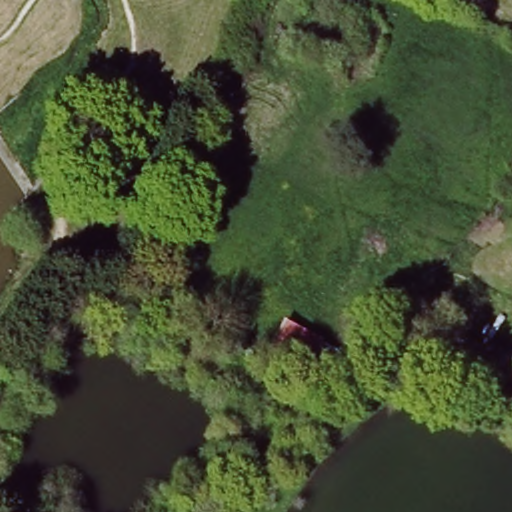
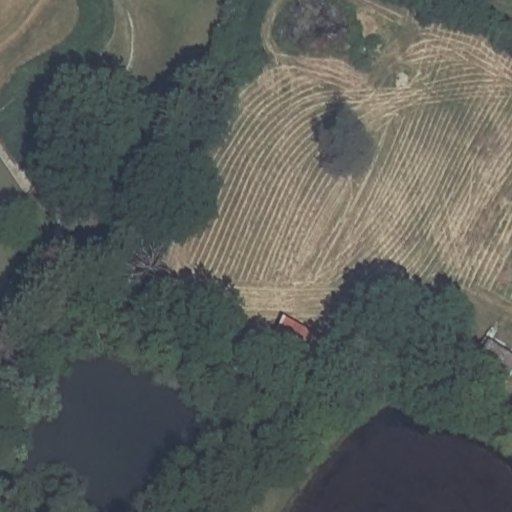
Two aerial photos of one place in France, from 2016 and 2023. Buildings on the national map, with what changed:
unchanged [(344,347),(327,377),(270,354),(283,320),(344,347)]
unchanged [(512,385),(442,346),(450,331),(457,335),(462,327),(484,340),(485,338),(512,353),(512,385)]

